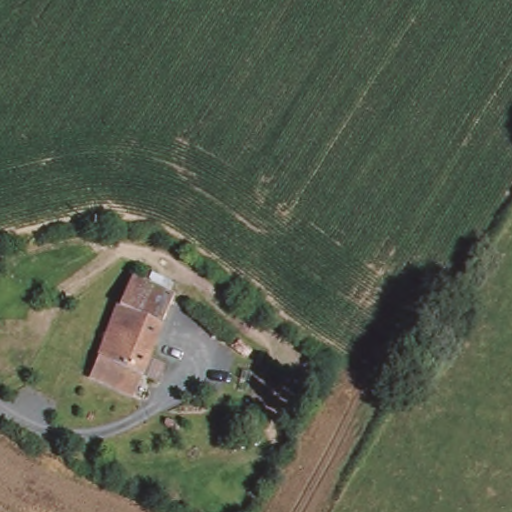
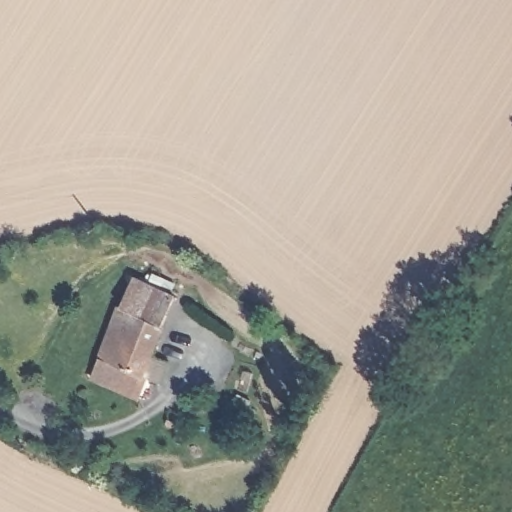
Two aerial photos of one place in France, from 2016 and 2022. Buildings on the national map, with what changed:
unchanged [(178,286),(139,387),(95,373),(116,319),(123,300),(125,301),(139,270),(178,286)]

